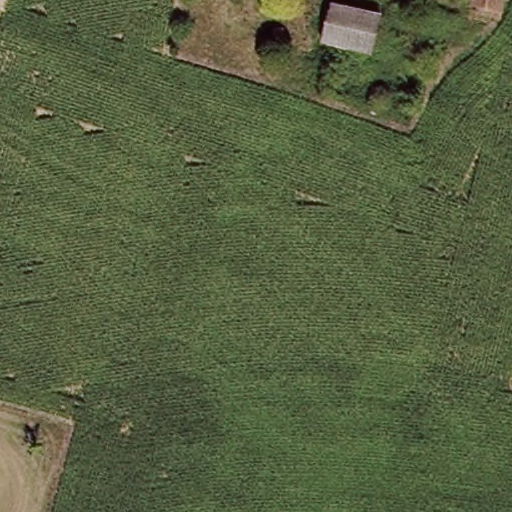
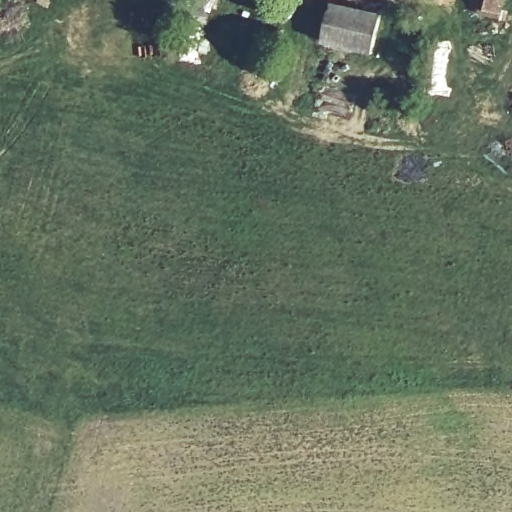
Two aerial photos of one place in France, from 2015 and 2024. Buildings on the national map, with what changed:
unchanged [(474,3),(475,0),(506,0),(503,11),(474,3)]
unchanged [(325,41),(335,1),(385,13),(375,53),(325,41)]

